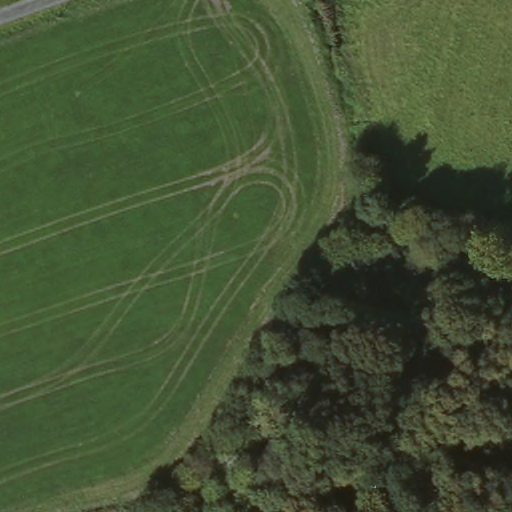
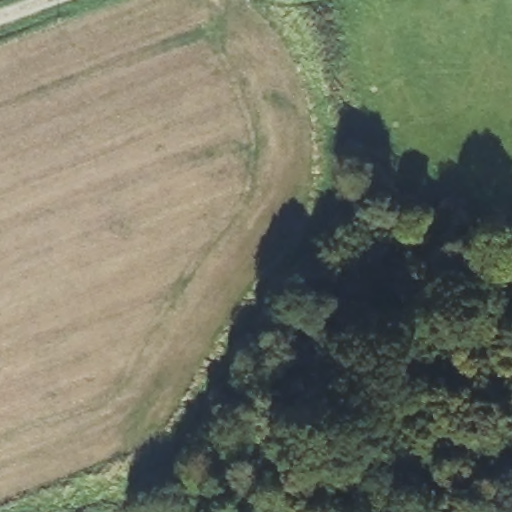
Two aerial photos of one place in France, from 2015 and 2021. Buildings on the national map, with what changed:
[]

